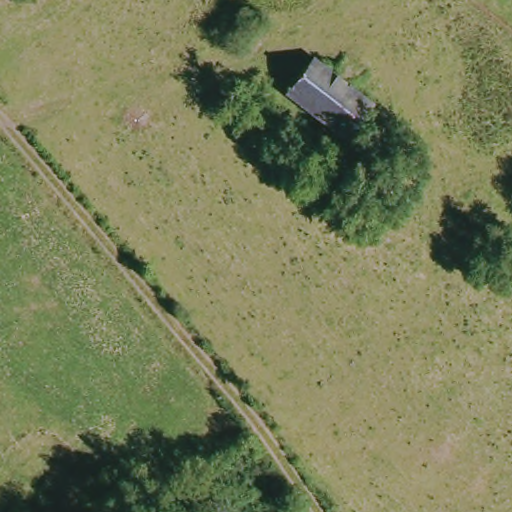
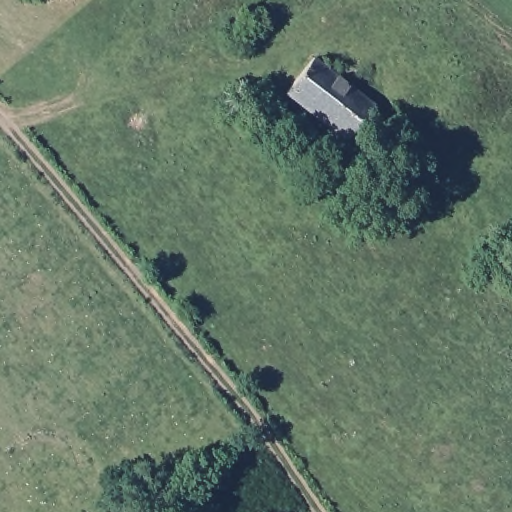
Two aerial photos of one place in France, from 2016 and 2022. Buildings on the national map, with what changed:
unchanged [(370,100),(346,134),(284,87),(312,53),(370,100)]

